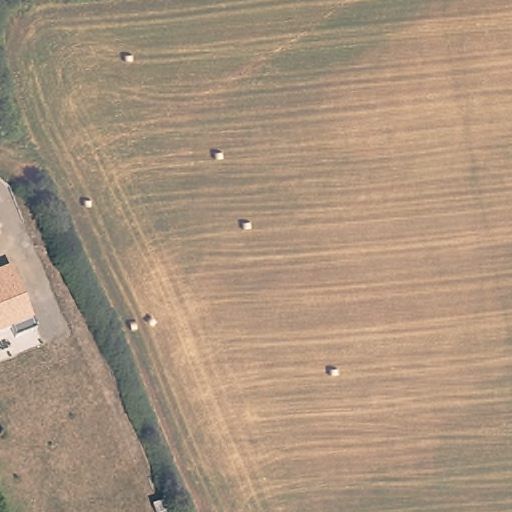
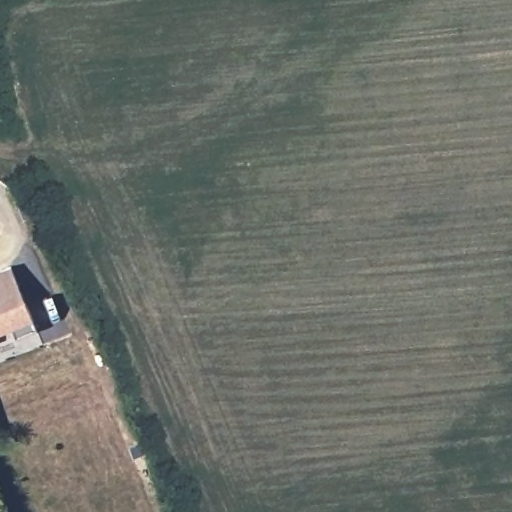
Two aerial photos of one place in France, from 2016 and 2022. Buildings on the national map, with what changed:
unchanged [(35,328),(16,337),(13,329),(0,334),(0,268),(10,263),(35,328)]

